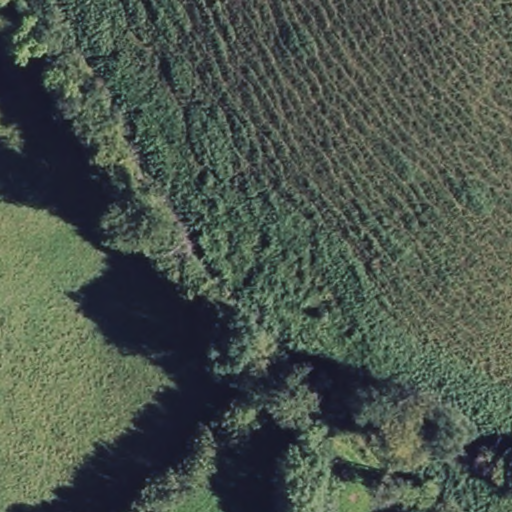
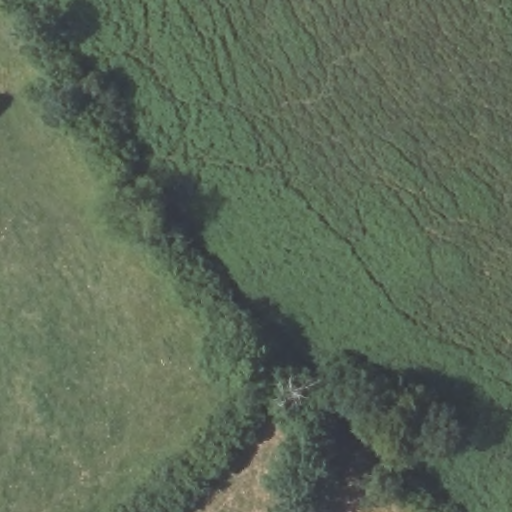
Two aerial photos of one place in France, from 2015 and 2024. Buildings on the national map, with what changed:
[]

